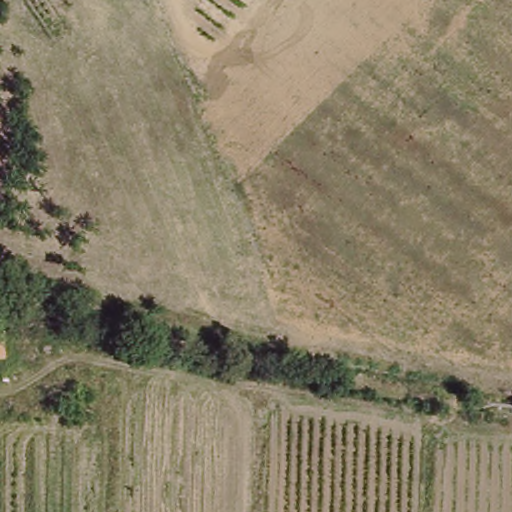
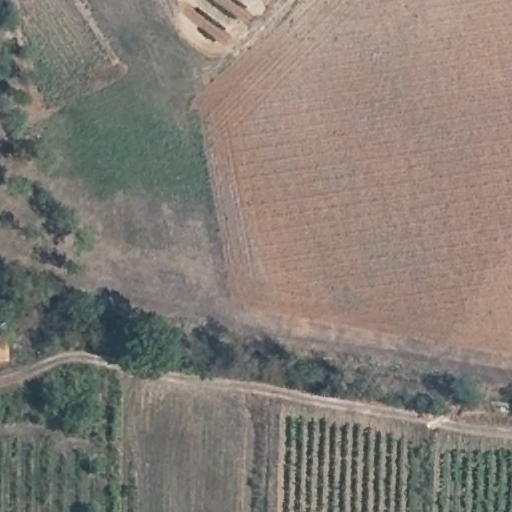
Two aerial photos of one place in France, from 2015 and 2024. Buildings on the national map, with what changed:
unchanged [(5,362),(0,362),(0,337),(5,337),(5,362)]

